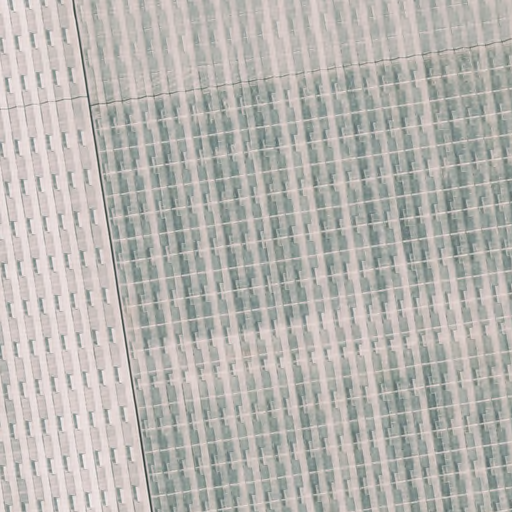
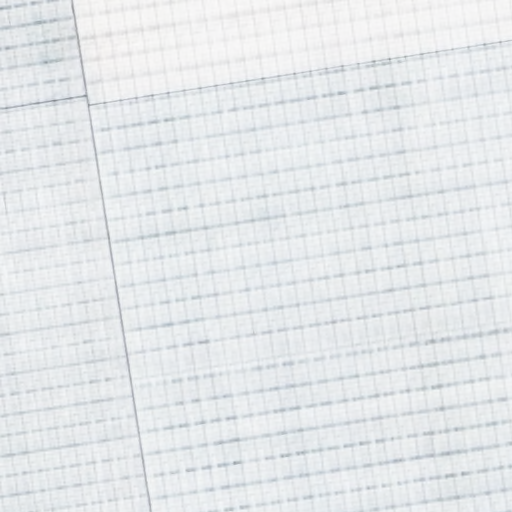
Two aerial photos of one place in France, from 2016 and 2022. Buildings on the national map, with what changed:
unchanged [(0,0),(512,0),(512,512),(0,512),(0,0)]

